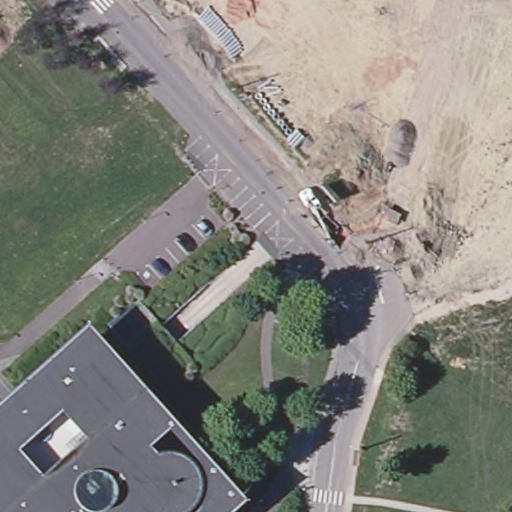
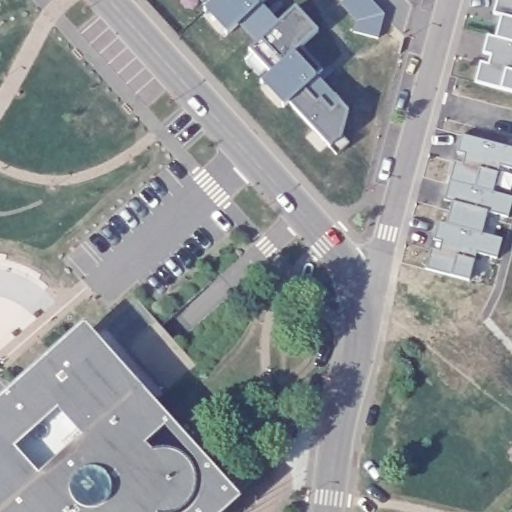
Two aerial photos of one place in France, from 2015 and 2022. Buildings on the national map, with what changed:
new [(249,15),(267,33),(297,8),(317,33),(301,48),(322,73),(310,85),(327,105),(335,99),(348,112),(342,137),(349,145),(337,154),(265,80),(270,74),(249,50),(255,41),(239,24),(230,31),(209,7),(214,2),(212,0),(265,0),(249,15)]
new [(384,15),(377,38),(354,32),(357,21),(340,3),(344,0),(370,0),(384,15)]
new [(488,63),(490,54),(482,53),(487,35),(495,37),(500,15),(492,13),(496,0),(512,0),(512,92),(474,82),(480,61),(488,63)]
new [(512,169),(500,165),(494,190),(512,196),(512,204),(509,218),(489,211),(482,235),(502,239),(497,258),(477,253),(470,280),(425,269),(432,248),(440,249),(443,240),(434,238),(440,221),(447,223),(452,202),(445,200),(455,162),(463,164),(467,152),(457,151),(463,134),(512,148),(512,169)]
unchanged [(242,499),(227,512),(0,512),(0,397),(85,321),(242,499)]

